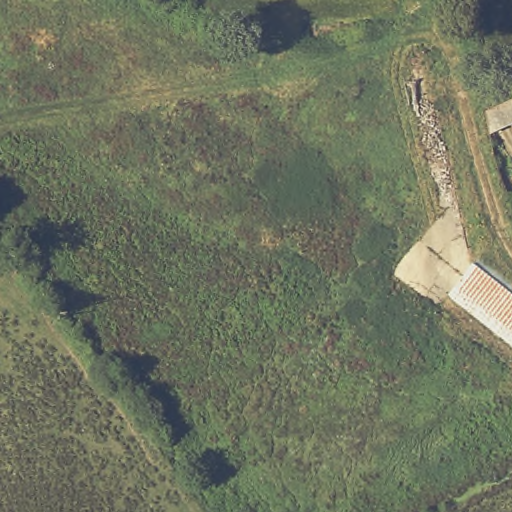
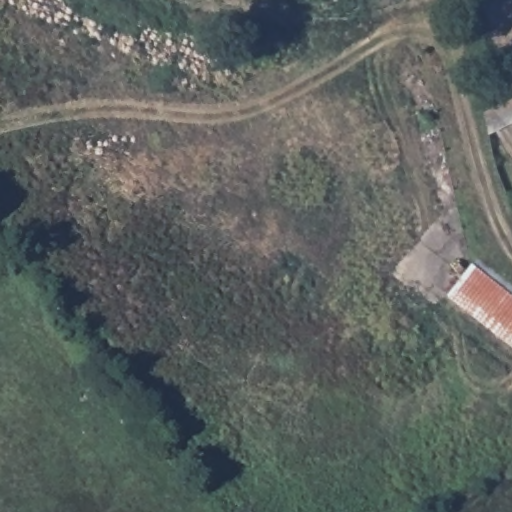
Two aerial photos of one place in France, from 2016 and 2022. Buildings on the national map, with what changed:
unchanged [(481,109),(510,94),(512,95),(512,117),(485,130),(481,109)]
unchanged [(448,300),(477,263),(512,290),(512,352),(448,300)]

